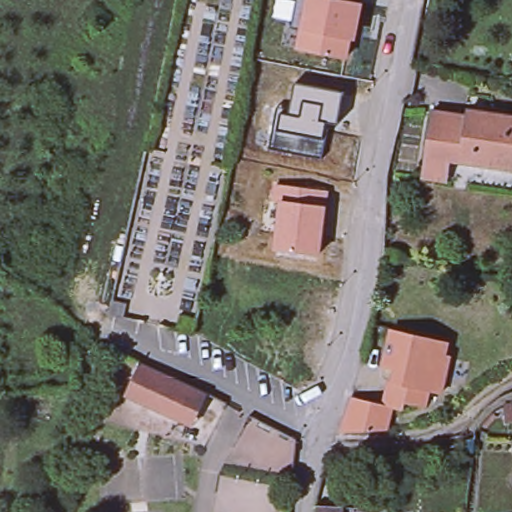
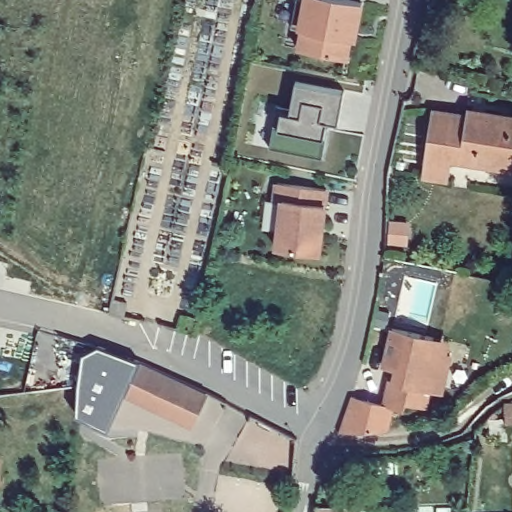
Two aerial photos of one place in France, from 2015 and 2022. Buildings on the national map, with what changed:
unchanged [(364,5),(348,60),(301,49),(305,26),(293,24),(297,0),(342,0),(364,5)]
unchanged [(289,111),(294,83),(343,94),(338,123),(326,121),(325,138),(321,156),(269,147),(276,109),(289,111)]
unchanged [(424,162),(433,113),(467,120),(468,114),(512,123),(512,174),(450,162),(449,168),(446,183),(421,178),(424,162)]
unchanged [(279,201),(269,201),(272,183),(329,192),(327,206),(321,255),(274,250),(279,201)]
unchanged [(351,392),(384,404),(392,381),(395,382),(399,371),(387,367),(400,330),(440,344),(436,357),(454,364),(442,400),(430,395),(424,411),(405,404),(403,411),(393,408),(388,426),(339,428),(339,427),(351,392)]
new [(126,397),(124,395),(109,430),(77,413),(83,354),(98,346),(141,362),(140,365),(126,397)]
unchanged [(208,396),(194,427),(126,397),(140,365),(208,396)]
unchanged [(504,405),(512,404),(512,423),(506,424),(504,405)]
unchanged [(315,512),(316,505),(341,507),(340,512),(315,512)]

